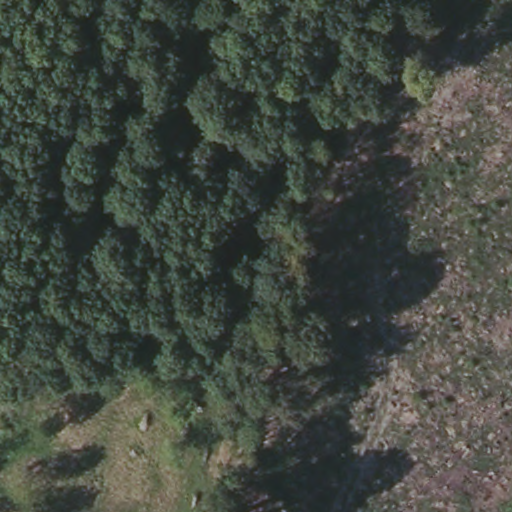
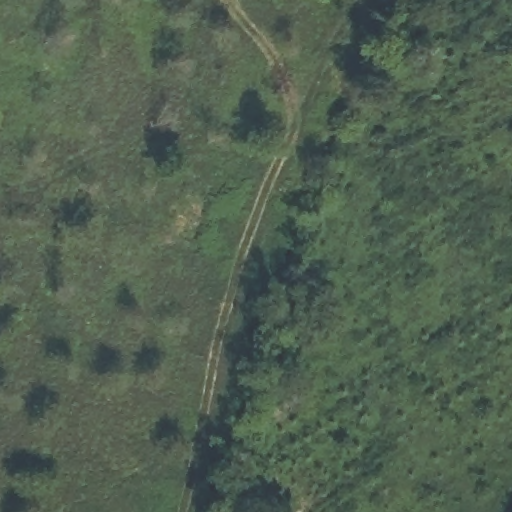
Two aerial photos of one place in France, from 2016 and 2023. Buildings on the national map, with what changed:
unchanged [(206,236),(201,257),(185,253),(190,232),(206,236)]

